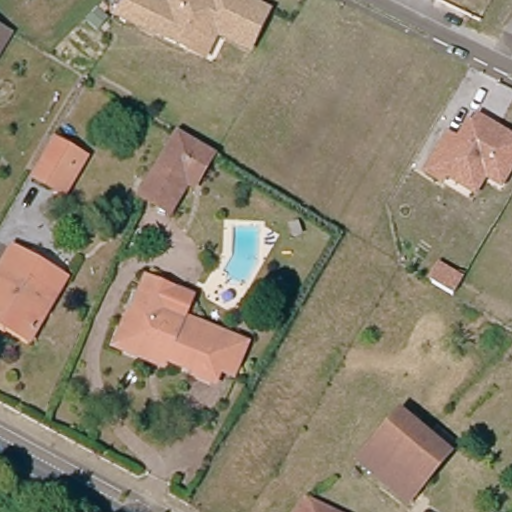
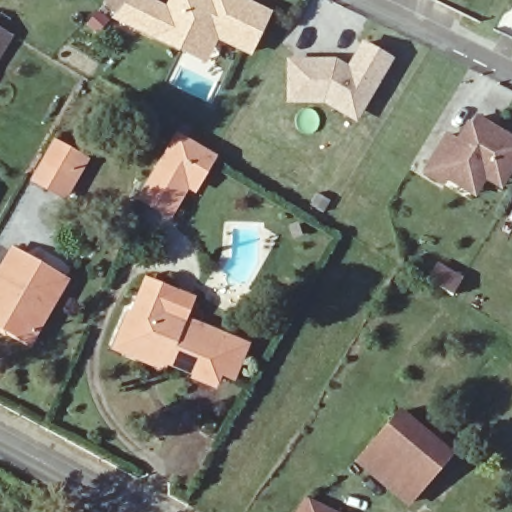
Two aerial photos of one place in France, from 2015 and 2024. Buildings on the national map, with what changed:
unchanged [(130,0),(155,0),(166,5),(169,0),(254,0),(274,10),(251,56),(219,41),(207,65),(112,18),(130,0)]
unchanged [(0,33),(11,40),(0,60),(0,33)]
new [(356,120),(323,103),(286,102),(287,59),(336,59),(347,66),(362,41),(394,59),(356,120)]
unchanged [(446,180),(442,185),(421,174),(445,131),(457,137),(465,125),(478,113),(512,133),(512,175),(503,190),(487,181),(475,199),(446,180)]
unchanged [(159,211),(143,201),(142,201),(147,194),(181,138),(212,157),(218,162),(220,162),(198,197),(190,192),(173,220),(159,211)]
unchanged [(52,193),(34,183),(59,141),(92,160),(82,177),(68,202),(52,193)]
unchanged [(36,344),(0,323),(0,283),(17,253),(70,284),(36,344)]
unchanged [(220,377),(215,386),(155,357),(153,360),(119,344),(153,280),(178,292),(195,301),(183,324),(224,343),(225,341),(247,352),(236,375),(232,383),(220,377)]
unchanged [(437,438),(460,459),(415,512),(409,512),(356,465),(405,410),(437,438)]
unchanged [(302,510),(305,512),(302,512),(302,510)]

